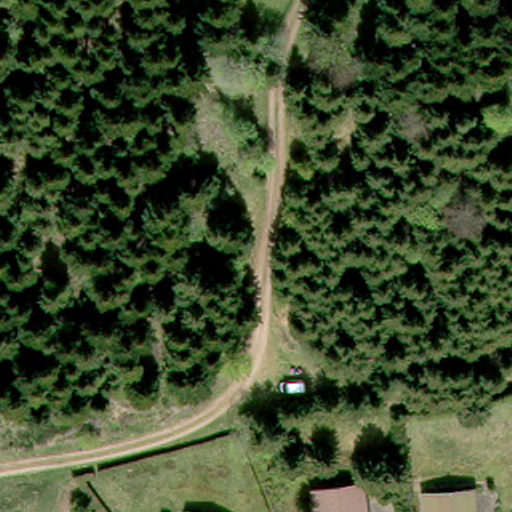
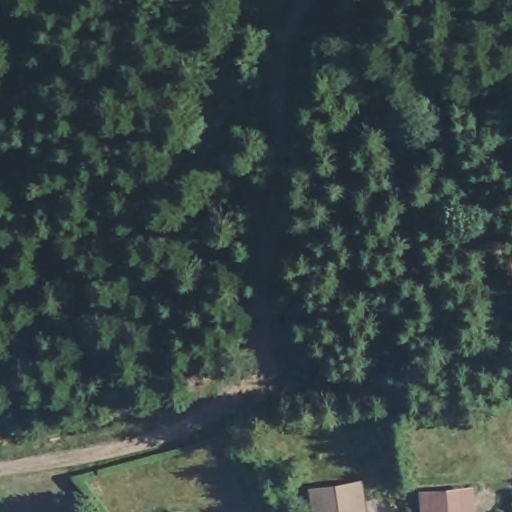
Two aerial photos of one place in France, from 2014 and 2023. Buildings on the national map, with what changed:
unchanged [(319,512),(316,490),(364,485),(367,512),(319,512)]
unchanged [(430,512),(427,492),(474,487),(477,512),(430,512)]

